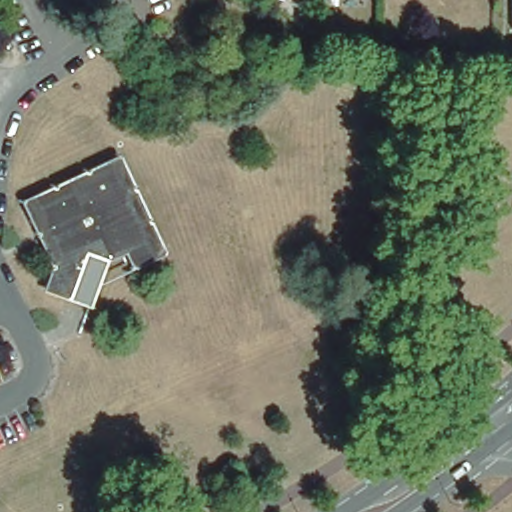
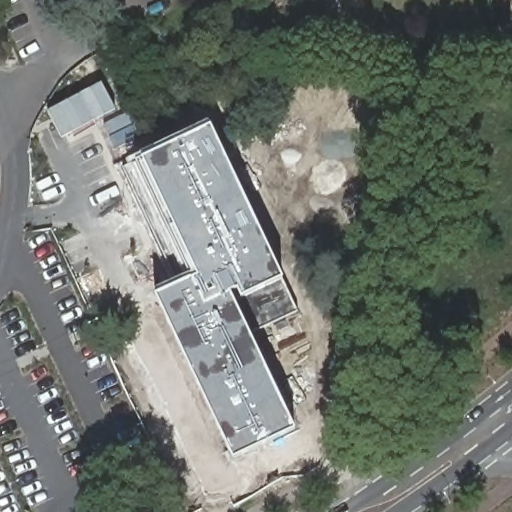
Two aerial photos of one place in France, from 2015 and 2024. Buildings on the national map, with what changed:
unchanged [(505,34),(507,0),(512,0),(512,34),(505,34)]
new [(233,459),(154,295),(191,277),(134,156),(208,121),(282,278),(240,297),(236,290),(229,292),(249,334),(295,430),(233,459)]
unchanged [(73,300),(62,296),(60,302),(46,296),(36,292),(40,282),(45,270),(13,204),(111,156),(159,254),(124,270),(121,265),(118,257),(104,262),(100,261),(89,297),(87,306),(78,302),(73,300)]
new [(249,334),(229,292),(236,290),(240,297),(282,278),(298,310),(249,334)]

